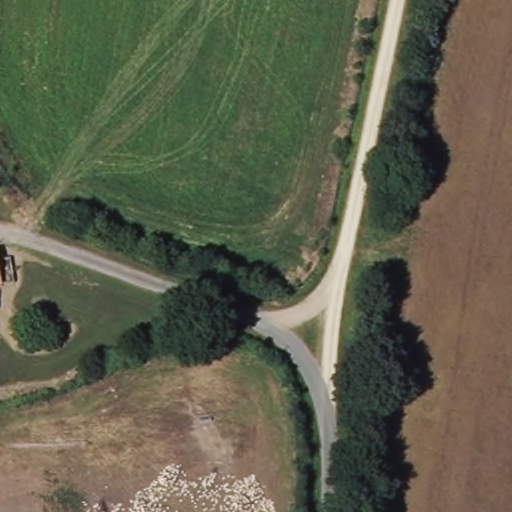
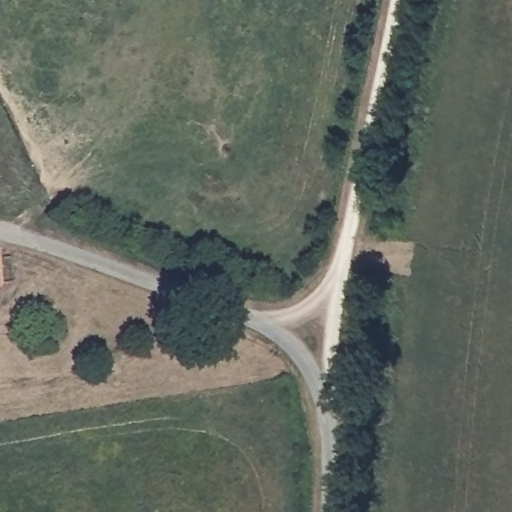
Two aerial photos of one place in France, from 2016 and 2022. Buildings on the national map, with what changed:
unchanged [(0,292),(0,261),(10,261),(10,287),(0,292)]
unchanged [(0,317),(0,302),(11,304),(10,317),(0,317)]

